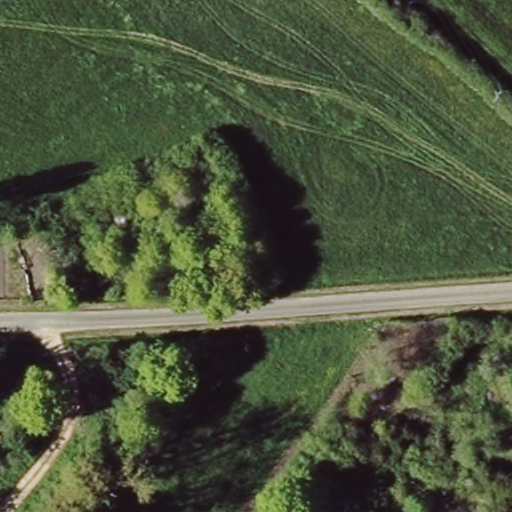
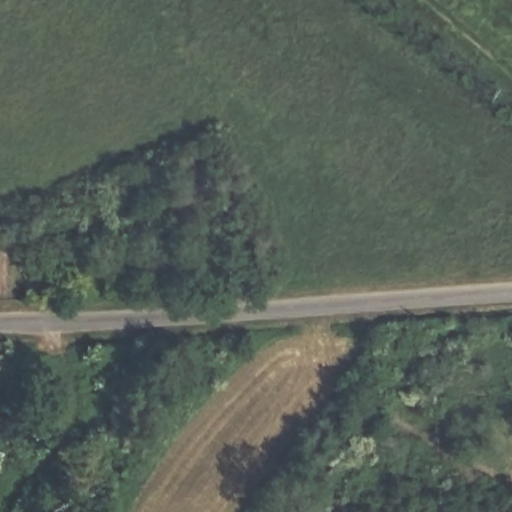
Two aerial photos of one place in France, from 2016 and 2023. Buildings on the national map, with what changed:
unchanged [(482,512),(477,512),(479,510),(482,512)]

